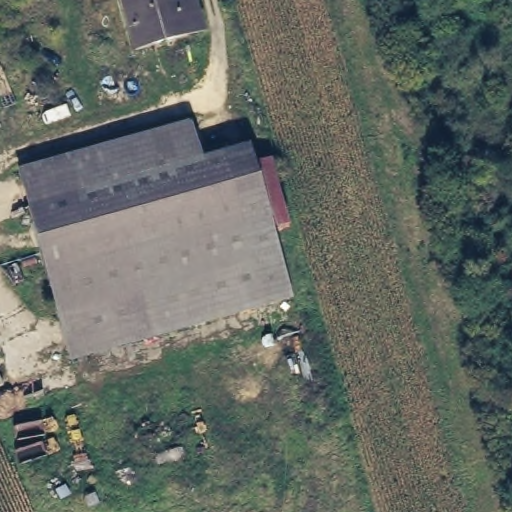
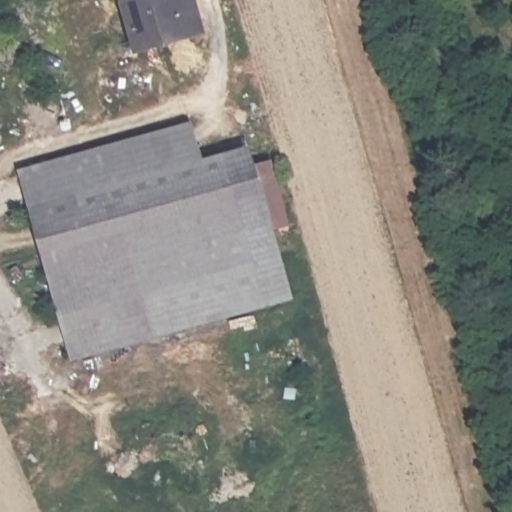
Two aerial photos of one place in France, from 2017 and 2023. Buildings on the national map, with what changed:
unchanged [(194,0),(205,40),(142,56),(130,12),(174,0),(194,0)]
unchanged [(30,215),(22,182),(194,140),(202,174),(30,215)]
unchanged [(262,316),(254,281),(60,328),(30,215),(202,174),(224,168),(249,162),(255,185),(289,309),(262,316)]
unchanged [(70,363),(60,328),(254,281),(262,316),(70,363)]

